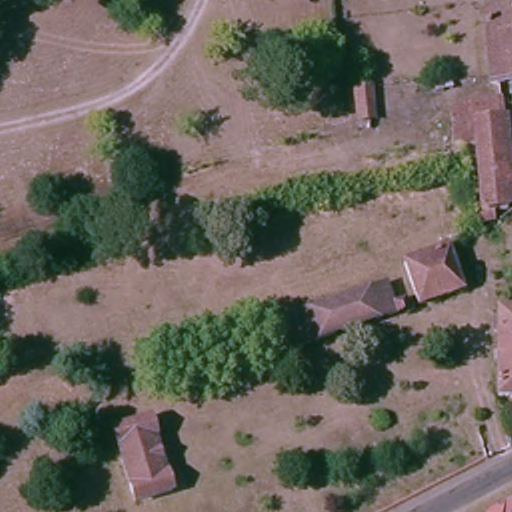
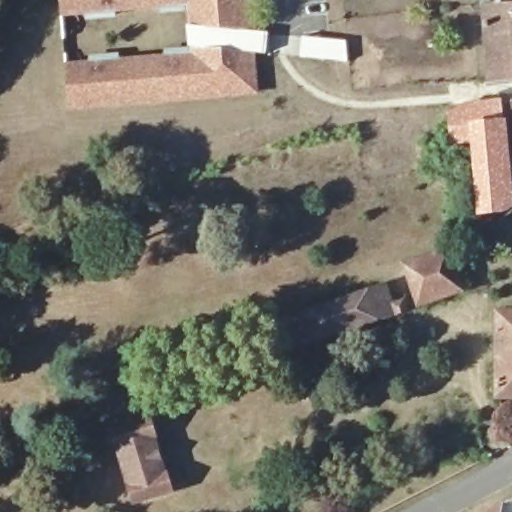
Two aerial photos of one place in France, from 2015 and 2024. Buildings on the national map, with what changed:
new [(67,63),(192,49),(189,26),(186,8),(64,17),(62,0),(252,0),(255,32),(268,33),(267,55),(256,54),(260,95),(72,109),(67,63)]
unchanged [(512,4),(512,82),(486,84),(486,78),(480,7),(512,4)]
new [(301,36),(345,40),(347,61),(299,56),(301,36)]
demolished [(371,89),(372,102),(355,103),(354,91),(371,89)]
unchanged [(509,210),(497,211),(497,218),(488,225),(479,140),(458,140),(456,111),(476,101),(504,99),(506,121),(502,121),(509,210)]
demolished [(420,144),(421,168),(399,169),(397,146),(420,144)]
demolished [(380,179),(381,190),(329,200),(328,188),(380,179)]
unchanged [(449,241),(466,287),(423,304),(404,259),(449,241)]
unchanged [(385,289),(393,307),(405,302),(409,313),(275,364),(264,335),(385,289)]
unchanged [(497,306),(512,306),(512,395),(499,395),(497,306)]
unchanged [(115,428),(143,420),(155,417),(159,431),(155,432),(168,475),(171,474),(177,491),(137,502),(115,428)]
unchanged [(510,500),(507,512),(488,512),(510,500)]

